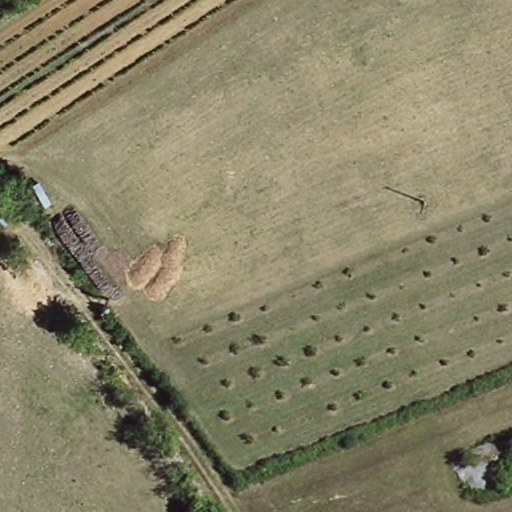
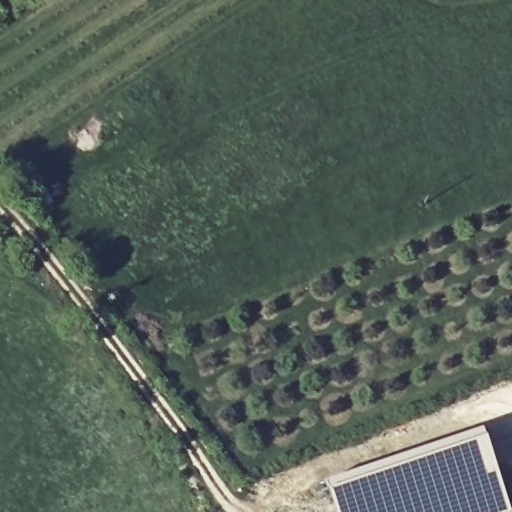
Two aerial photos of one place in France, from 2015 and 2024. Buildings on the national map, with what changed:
new [(511,512),(334,512),(324,481),(482,427),(511,512)]

